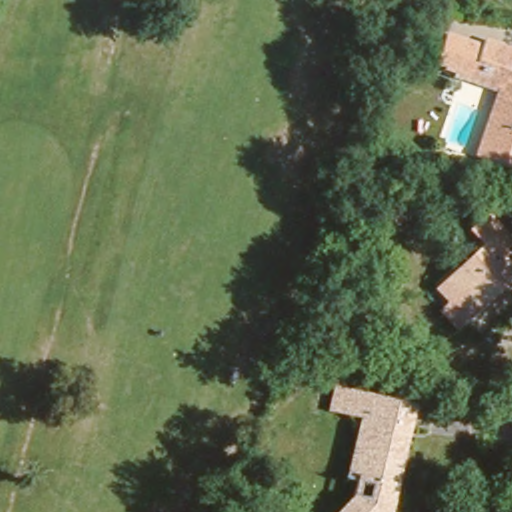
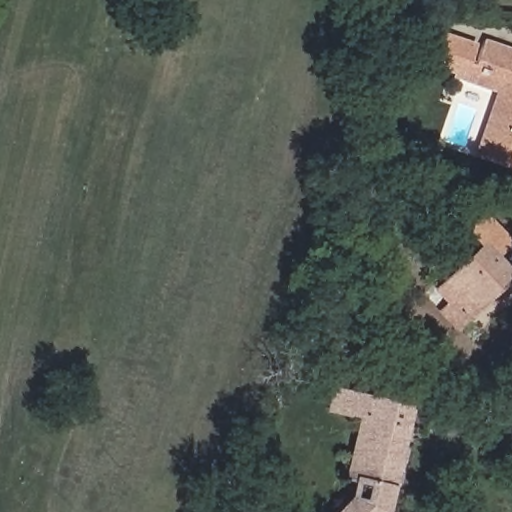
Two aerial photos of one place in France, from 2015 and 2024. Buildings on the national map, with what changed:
unchanged [(496,87),(426,66),(438,30),(480,39),(485,34),(512,43),(512,165),(473,151),(496,87)]
unchanged [(430,288),(440,280),(487,235),(475,221),(485,211),(502,226),(501,230),(512,239),(500,251),(512,264),(512,273),(502,282),(486,298),(471,312),(461,321),(430,288)]
unchanged [(338,512),(335,507),(361,486),(375,489),(378,473),(365,470),(377,405),(358,400),(360,389),(417,401),(395,508),(391,512),(338,512)]

